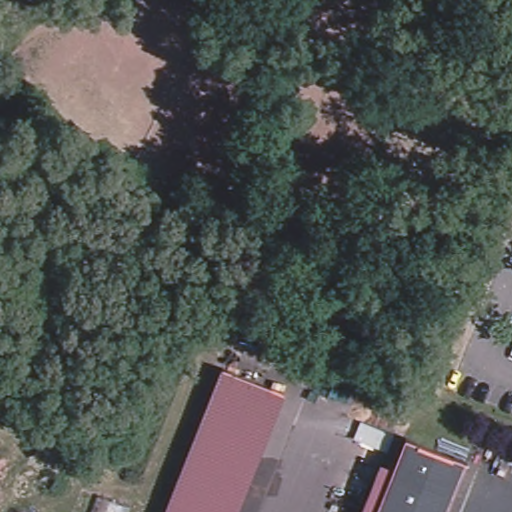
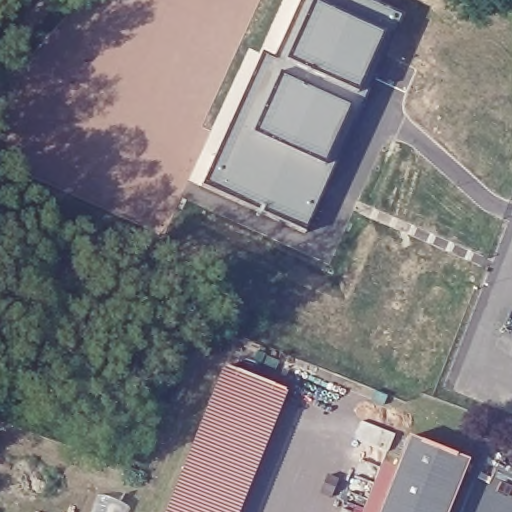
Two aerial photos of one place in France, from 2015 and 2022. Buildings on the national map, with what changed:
new [(187,142),(197,145),(264,0),(372,0),(375,1),(278,214),(174,167),(187,142)]
unchanged [(244,376),(203,483),(192,512),(170,512),(227,369),(244,376)]
unchanged [(244,376),(284,392),(237,512),(192,512),(203,483),(244,376)]
unchanged [(459,459),(438,512),(371,512),(401,437),(459,459)]

